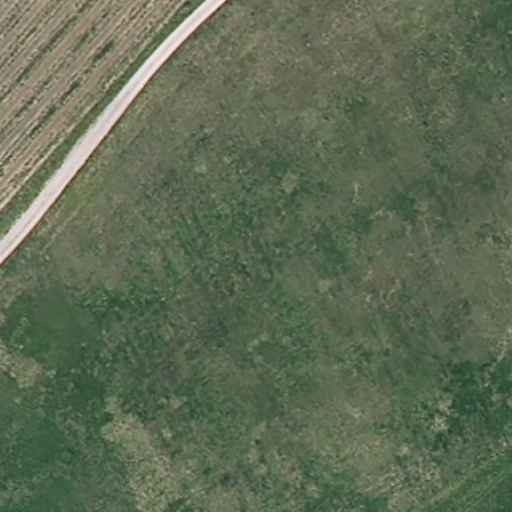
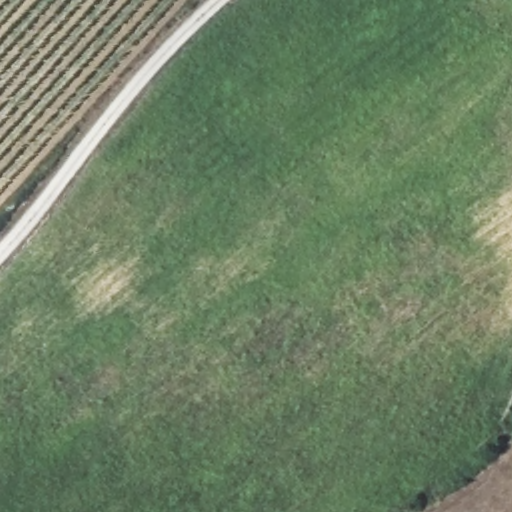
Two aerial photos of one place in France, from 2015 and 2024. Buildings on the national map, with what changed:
[]

